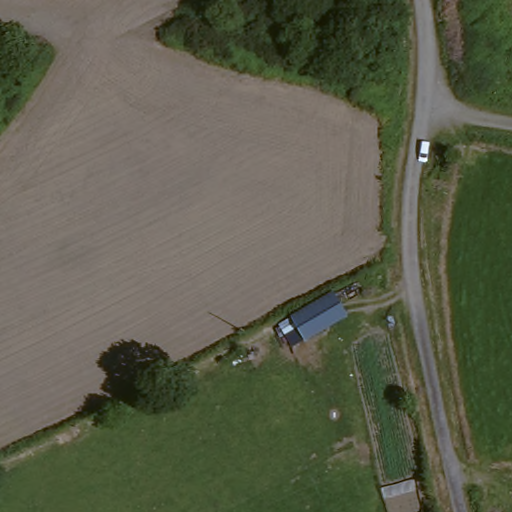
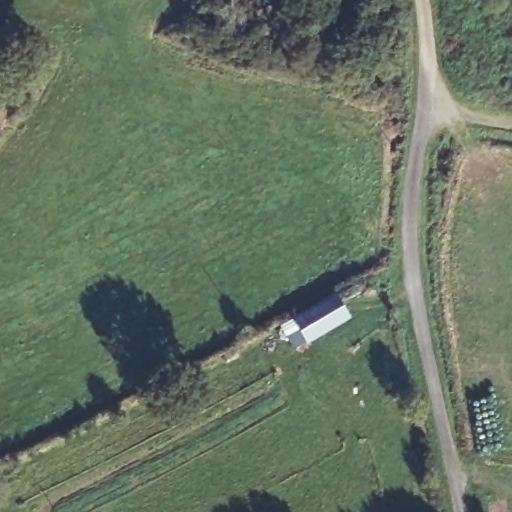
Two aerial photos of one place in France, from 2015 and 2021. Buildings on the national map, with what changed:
unchanged [(351,315),(306,341),(305,339),(290,348),(277,324),(334,289),(351,315)]

